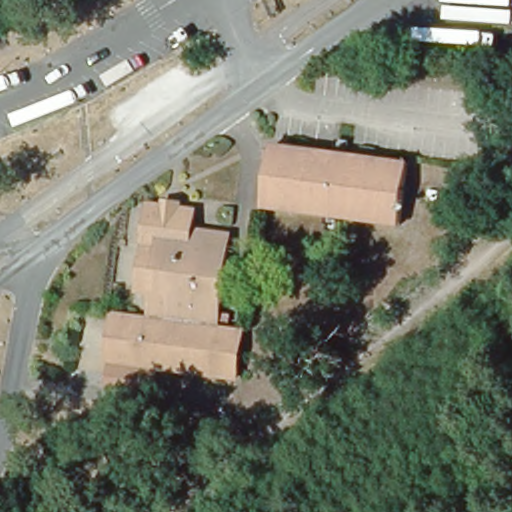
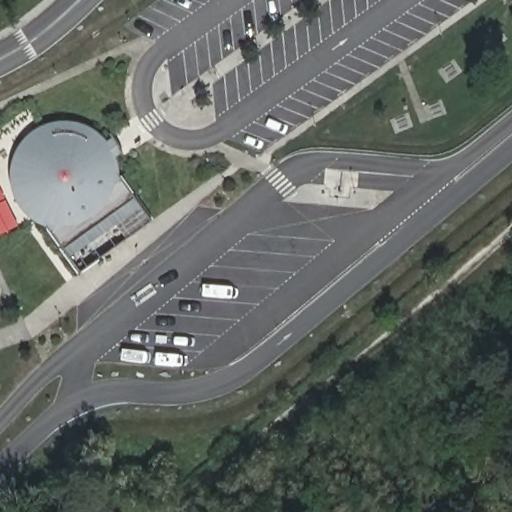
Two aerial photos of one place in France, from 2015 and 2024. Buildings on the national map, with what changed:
new [(34,218),(24,211),(18,203),(13,192),(10,178),(10,167),(13,156),(20,143),(28,133),(39,126),(49,122),(61,119),(74,120),(87,123),(99,130),(106,139),(113,136),(122,153),(116,155),(119,162),(119,175),(140,205),(69,256),(46,225),(34,218)]
demolished [(401,224),(249,206),(254,144),(407,162),(401,224)]
demolished [(199,227),(235,230),(223,325),(248,328),(237,380),(154,372),(151,416),(101,409),(113,311),(131,312),(141,199),(200,207),(199,227)]

